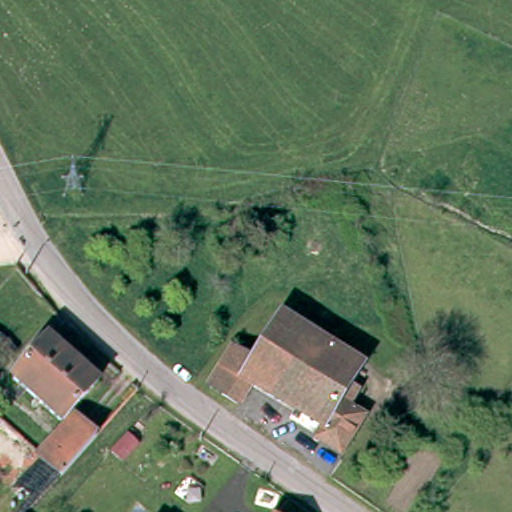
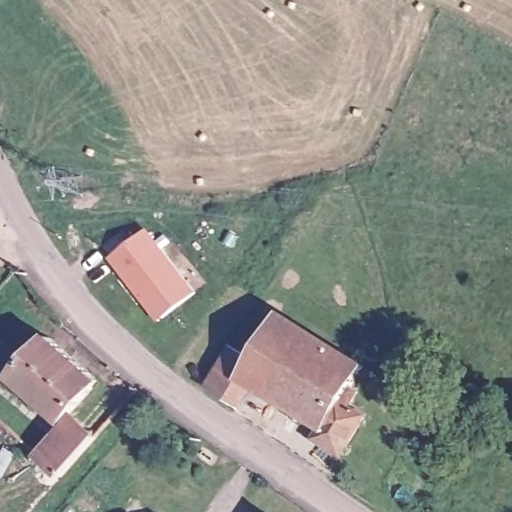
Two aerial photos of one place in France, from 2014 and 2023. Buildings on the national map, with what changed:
new [(139,301),(107,258),(144,230),(192,293),(159,318),(155,321),(139,301)]
unchanged [(346,389),(356,396),(345,411),(355,419),(332,453),(305,434),(314,422),(244,376),(231,395),(202,375),(228,335),(245,346),(255,352),(280,313),(362,365),(346,389)]
unchanged [(49,330),(99,378),(62,416),(14,370),(49,330)]
unchanged [(73,415),(94,433),(60,470),(41,451),(73,415)]

